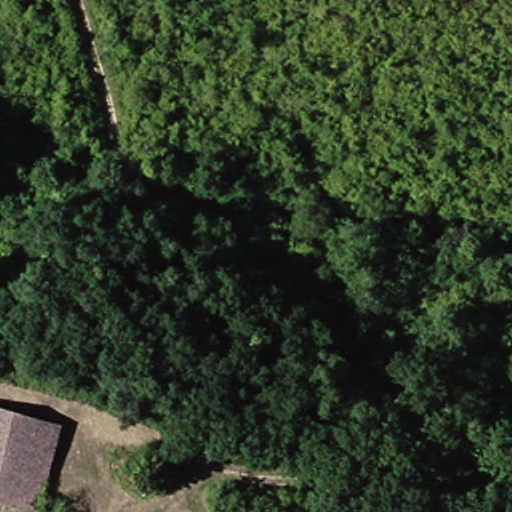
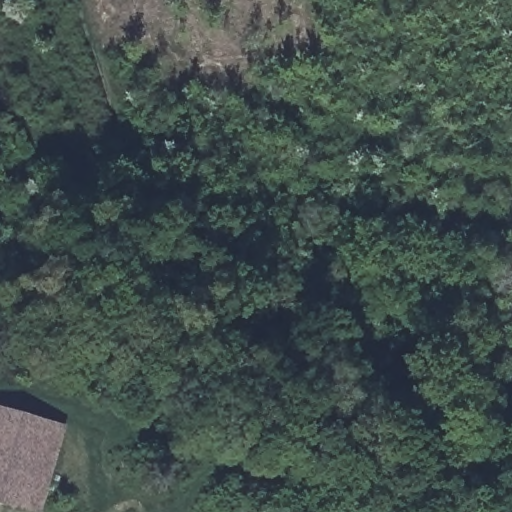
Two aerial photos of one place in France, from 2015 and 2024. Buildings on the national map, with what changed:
unchanged [(42,510),(15,503),(21,473),(0,469),(0,406),(63,422),(42,510)]
unchanged [(15,503),(0,500),(0,469),(21,473),(15,503)]

